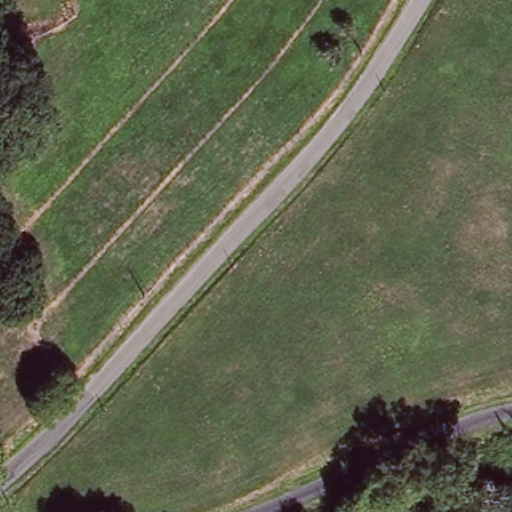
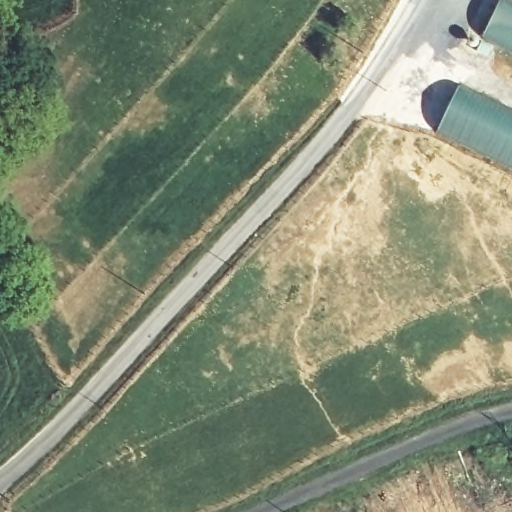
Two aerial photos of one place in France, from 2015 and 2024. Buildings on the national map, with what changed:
new [(482,38),(500,0),(512,0),(512,53),(482,38)]
new [(433,131),(458,84),(512,110),(512,170),(433,131)]

